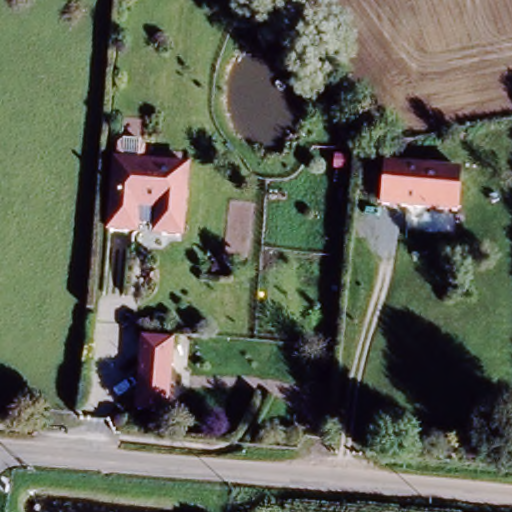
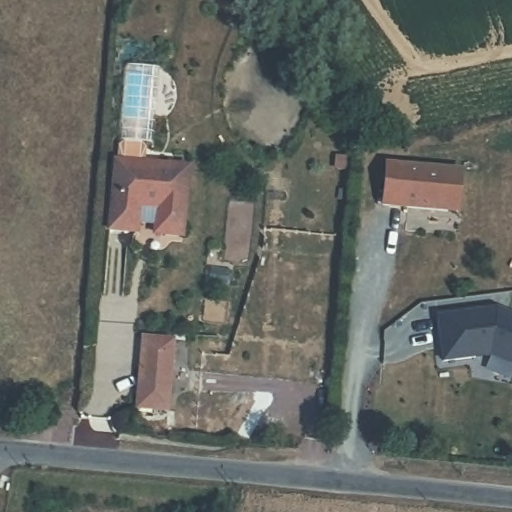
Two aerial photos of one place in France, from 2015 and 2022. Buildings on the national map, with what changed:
unchanged [(115,164),(117,164),(119,149),(126,144),(142,147),(146,152),(145,166),(188,171),(183,239),(163,236),(156,228),(156,225),(138,224),(136,228),(129,234),(109,231),(115,164)]
unchanged [(354,156),(351,170),(342,169),(344,155),(354,156)]
unchanged [(465,163),(465,206),(371,204),(372,161),(465,163)]
new [(489,355),(442,360),(437,315),(507,307),(512,309),(512,364),(489,355)]
unchanged [(140,340),(170,342),(165,410),(136,407),(140,340)]

